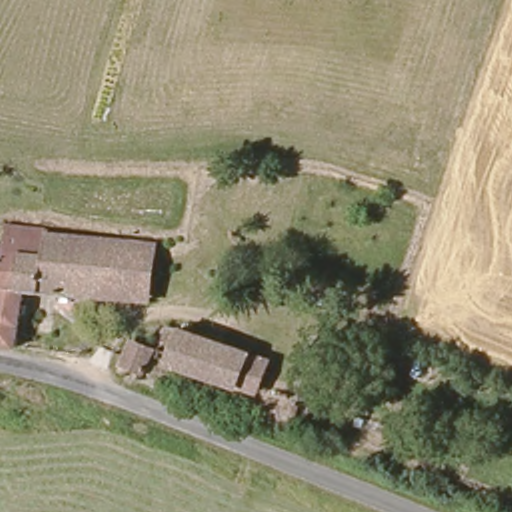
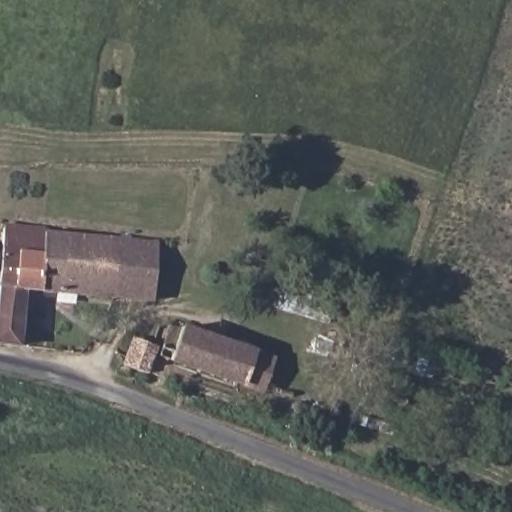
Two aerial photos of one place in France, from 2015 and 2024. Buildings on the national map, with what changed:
unchanged [(0,291),(0,230),(8,231),(0,291)]
unchanged [(26,293),(17,345),(0,341),(0,291),(8,231),(46,236),(45,244),(118,254),(110,305),(26,293)]
unchanged [(120,239),(159,244),(147,309),(110,305),(118,254),(120,239)]
unchanged [(264,390),(247,386),(163,366),(166,354),(151,350),(158,328),(172,332),(255,355),(274,360),(264,390)]
unchanged [(124,382),(132,353),(153,358),(148,381),(139,379),(137,387),(124,382)]

